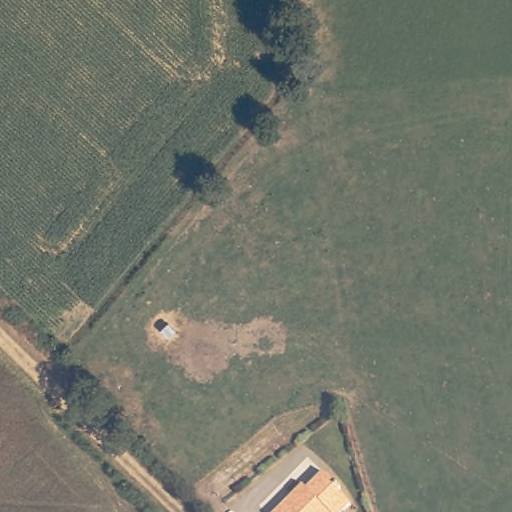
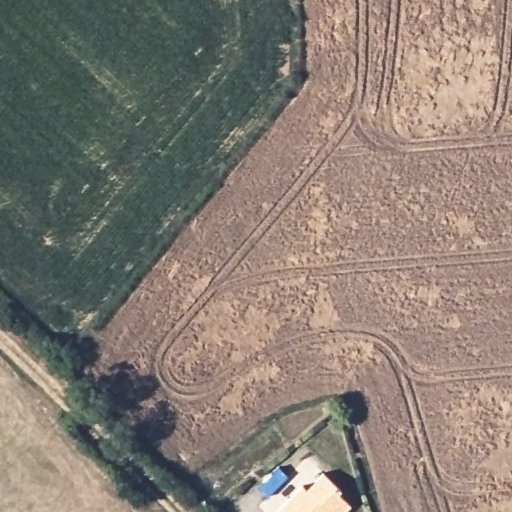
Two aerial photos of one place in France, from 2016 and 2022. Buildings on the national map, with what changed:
unchanged [(292,509),(290,506),(324,471),(341,488),(337,491),(352,507),(348,512),(289,512),(292,509)]

